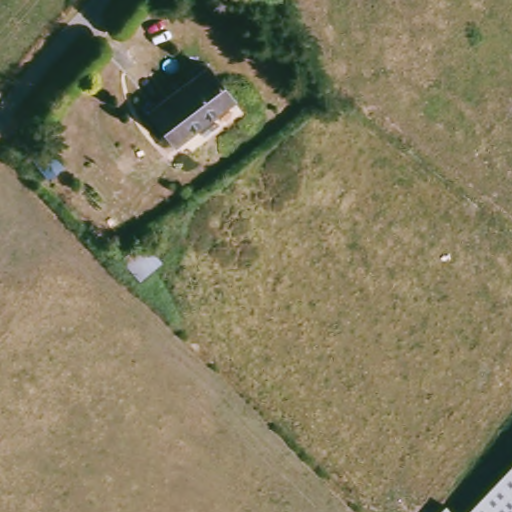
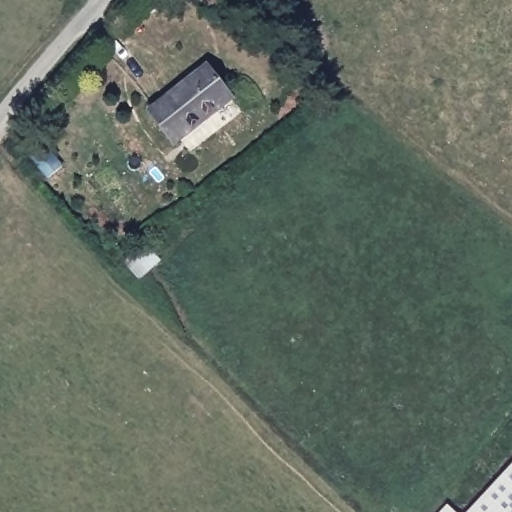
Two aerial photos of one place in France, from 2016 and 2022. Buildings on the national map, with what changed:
unchanged [(205,64),(231,94),(177,141),(151,111),(205,64)]
unchanged [(31,142),(54,165),(45,175),(23,151),(31,142)]
unchanged [(469,512),(512,467),(512,512),(469,512)]
unchanged [(454,512),(443,512),(448,506),(454,512)]

